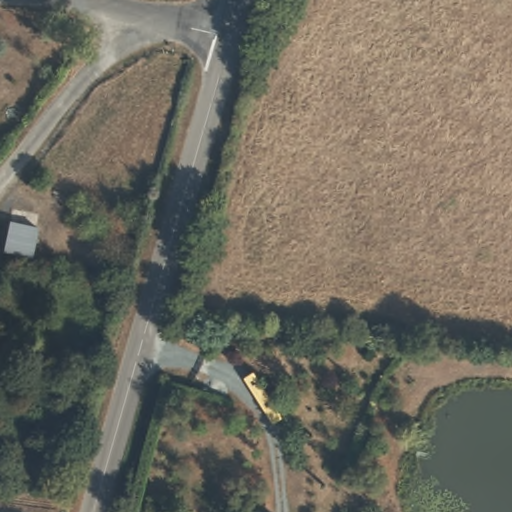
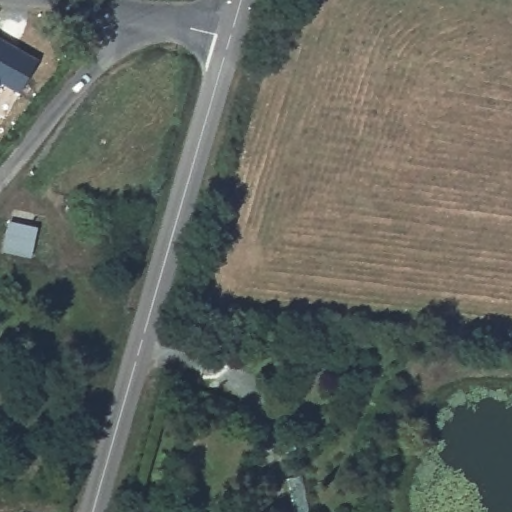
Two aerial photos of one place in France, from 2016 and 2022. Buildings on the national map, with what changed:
new [(39,59),(19,93),(2,84),(0,87),(0,38),(39,59)]
unchanged [(38,223),(30,250),(22,248),(4,244),(11,216),(27,220),(38,223)]

